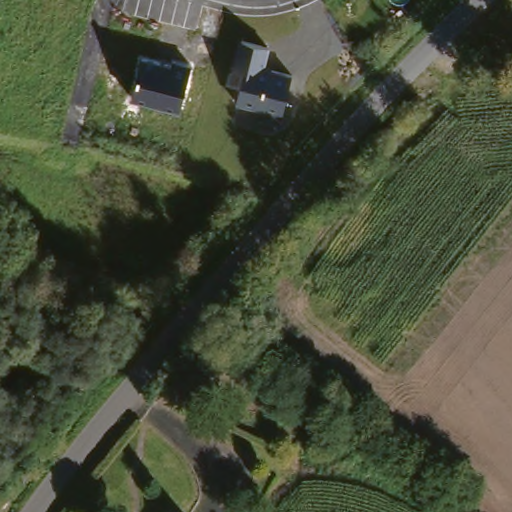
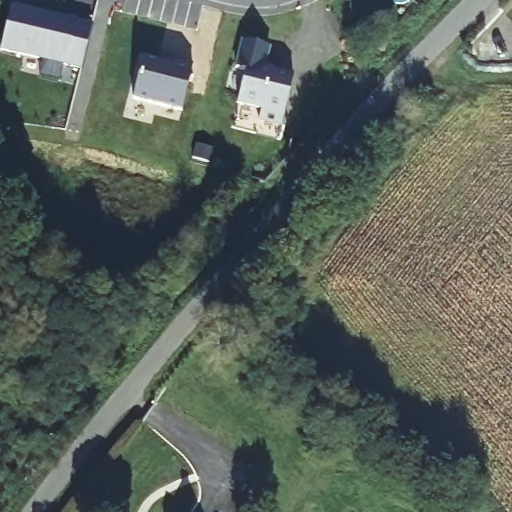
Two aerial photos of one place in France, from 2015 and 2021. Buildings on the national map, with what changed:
new [(92,24),(81,69),(1,50),(11,3),(92,24)]
unchanged [(245,68),(233,66),(239,39),(270,47),(266,67),(293,73),(284,118),(237,105),(245,68)]
unchanged [(141,57),(170,63),(171,57),(194,62),(183,112),(132,97),(141,57)]

